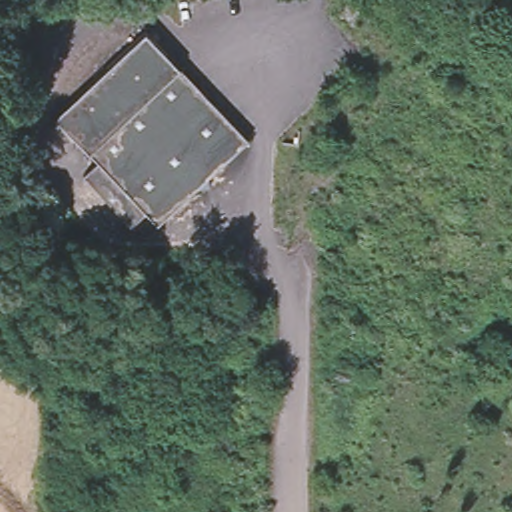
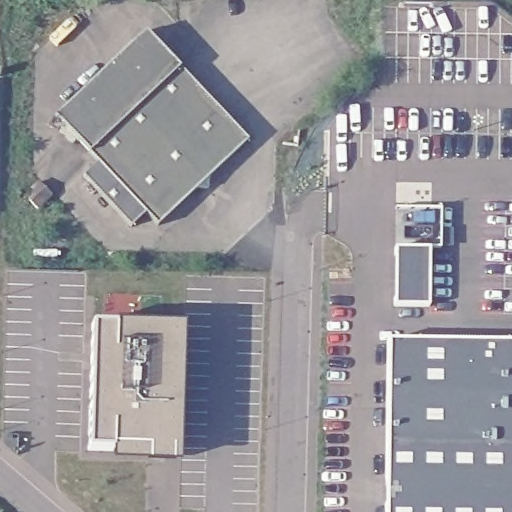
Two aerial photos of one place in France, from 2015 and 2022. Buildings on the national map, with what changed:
unchanged [(147,28),(250,139),(209,176),(210,185),(197,187),(160,223),(147,211),(133,224),(85,173),(100,158),(57,114),(147,28)]
unchanged [(39,211),(31,202),(38,195),(33,190),(40,185),(52,198),(39,211)]
new [(395,248),(430,249),(430,307),(395,307),(395,248)]
new [(92,330),(115,330),(115,332),(175,334),(172,453),(112,451),(112,454),(88,453),(92,330)]
new [(387,340),(512,342),(512,512),(386,512),(387,340)]

